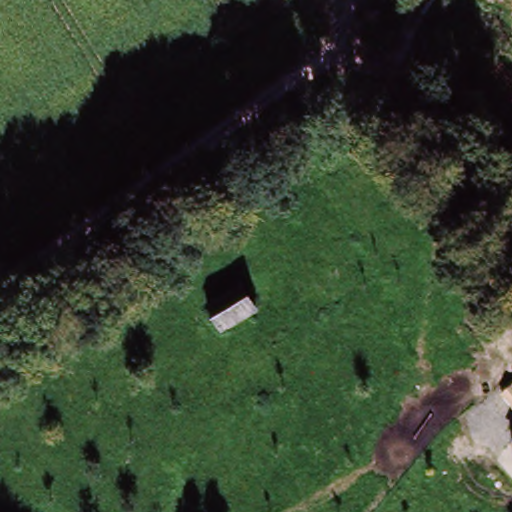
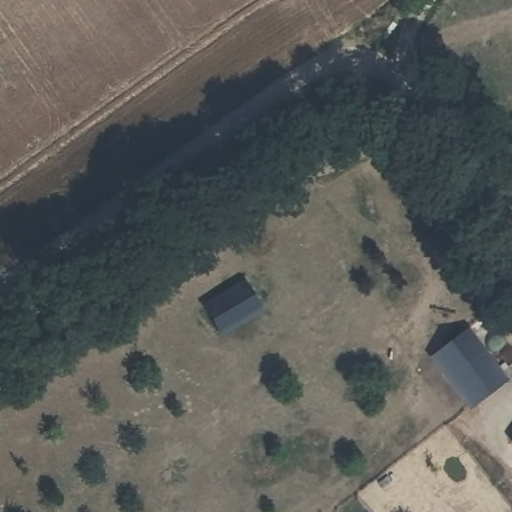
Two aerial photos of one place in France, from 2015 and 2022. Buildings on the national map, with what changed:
unchanged [(253,303),(210,334),(193,312),(235,281),(253,303)]
new [(507,380),(468,410),(428,357),(469,327),(507,380)]

